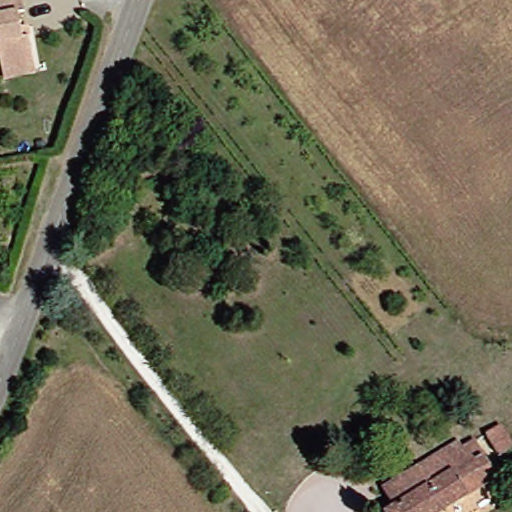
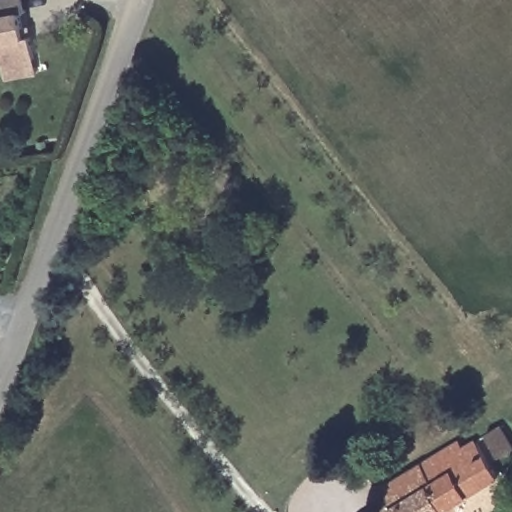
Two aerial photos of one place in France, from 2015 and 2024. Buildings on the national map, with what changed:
unchanged [(12,16),(13,32),(21,31),(22,38),(26,62),(28,75),(0,78),(0,0),(15,0),(18,16),(12,16)]
unchanged [(479,439),(495,430),(510,450),(493,460),(479,439)]
unchanged [(491,483),(442,512),(384,512),(389,509),(378,491),(449,446),(456,456),(468,450),(491,483)]

